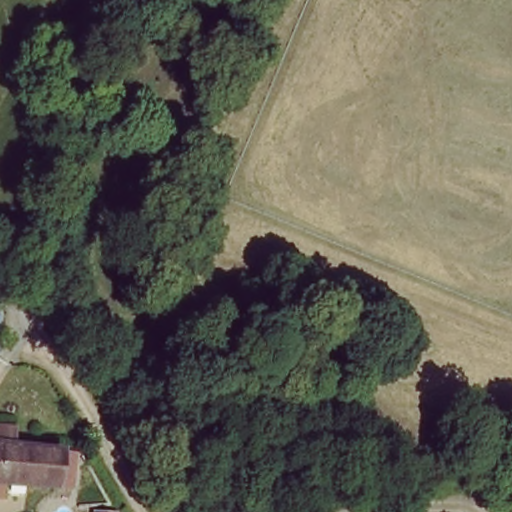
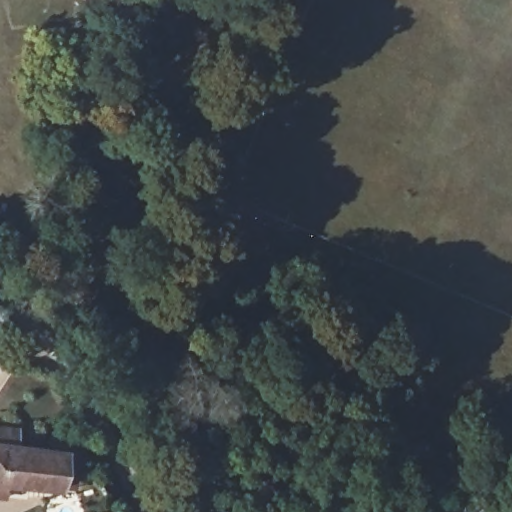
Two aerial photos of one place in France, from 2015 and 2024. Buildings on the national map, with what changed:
unchanged [(0,319),(0,304),(1,305),(0,319)]
unchanged [(0,480),(0,424),(18,425),(16,443),(61,447),(73,449),(74,472),(75,486),(0,480)]
unchanged [(116,512),(99,512),(99,511),(116,512)]

